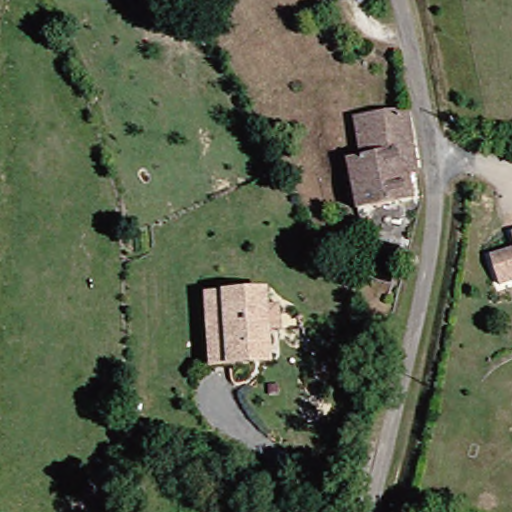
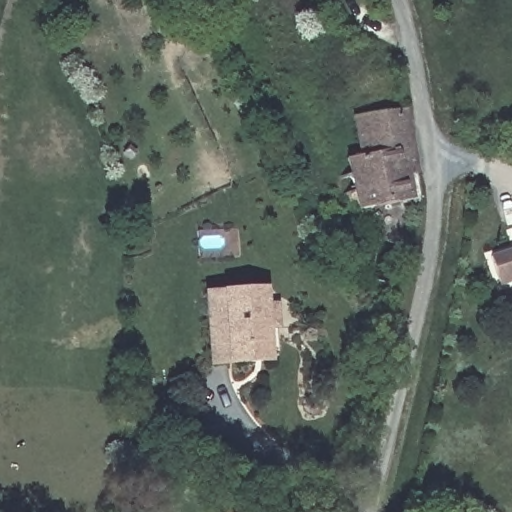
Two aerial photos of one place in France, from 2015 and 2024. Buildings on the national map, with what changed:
unchanged [(363,210),(351,160),(369,155),(363,117),(404,108),(407,126),(417,169),(405,171),(411,201),(363,210)]
unchanged [(501,254),(512,250),(512,281),(510,282),(501,254)]
unchanged [(225,363),(207,363),(203,292),(263,290),(263,304),(274,303),(276,326),(266,326),(266,345),(267,362),(225,363)]

